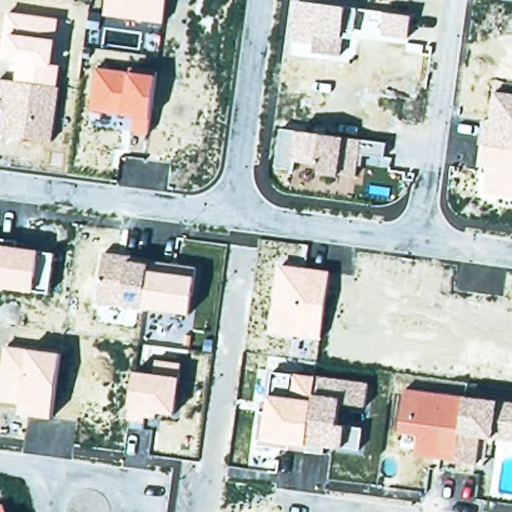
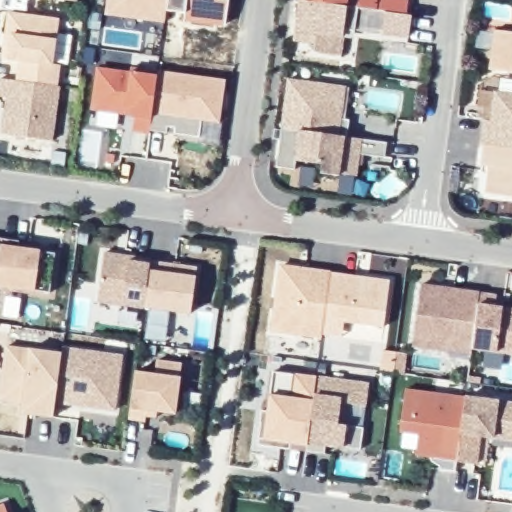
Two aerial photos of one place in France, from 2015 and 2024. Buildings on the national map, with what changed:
unchanged [(105,16),(107,0),(169,0),(166,24),(105,16)]
new [(184,11),(167,10),(169,0),(228,0),(224,26),(182,22),(184,11)]
unchanged [(353,40),(343,40),(341,55),(314,52),(315,45),(295,42),(299,0),(357,8),(353,40)]
new [(299,0),(344,0),(344,6),(299,0)]
unchanged [(54,64),(60,64),(52,140),(2,135),(5,96),(0,95),(0,79),(16,81),(19,61),(2,59),(7,12),(60,18),(54,64)]
unchanged [(412,15),(408,40),(382,35),(385,12),(412,15)]
new [(494,29),(512,31),(512,73),(489,70),(494,29)]
unchanged [(157,76),(149,130),(148,134),(132,131),(134,115),(90,110),(95,67),(157,76)]
new [(157,71),(225,80),(219,123),(200,120),(197,137),(149,130),(157,76),(157,71)]
new [(339,136),(281,129),(279,128),(287,78),(346,86),(339,136)]
unchanged [(512,196),(485,193),(487,166),(480,165),(483,146),(480,145),(482,121),(490,122),(495,91),(512,94),(512,196)]
unchanged [(339,136),(387,143),(385,156),(364,155),(364,166),(360,166),(358,176),(320,171),(321,165),(295,161),(294,170),(276,167),(281,129),(339,136)]
unchanged [(17,242),(17,247),(55,254),(49,292),(0,287),(0,240),(17,242)]
unchanged [(133,256),(132,261),(150,265),(150,270),(195,276),(190,313),(97,301),(105,252),(133,256)]
unchanged [(332,271),(322,335),(322,339),(270,333),(279,263),(332,271)]
new [(388,280),(381,327),(342,321),(340,337),(322,335),(332,272),(388,280)]
new [(477,291),(476,302),(469,350),(469,355),(412,347),(422,283),(477,291)]
new [(496,305),(512,307),(512,356),(495,353),(469,350),(476,302),(477,291),(497,294),(496,305)]
unchanged [(29,348),(62,352),(52,418),(20,413),(21,404),(0,401),(0,389),(5,345),(29,348)]
new [(55,403),(62,352),(63,346),(120,354),(113,411),(55,403)]
unchanged [(176,413),(157,411),(155,418),(145,418),(144,422),(128,420),(130,409),(134,371),(155,373),(157,360),(182,363),(176,413)]
unchanged [(369,383),(366,405),(340,403),(337,422),(362,427),(360,450),(324,446),(323,452),(258,445),(261,412),(267,412),(272,372),(369,383)]
unchanged [(512,442),(480,437),(477,465),(416,455),(417,435),(398,431),(406,389),(512,403),(512,442)]
unchanged [(10,507),(12,512),(0,512),(0,510),(10,507)]

